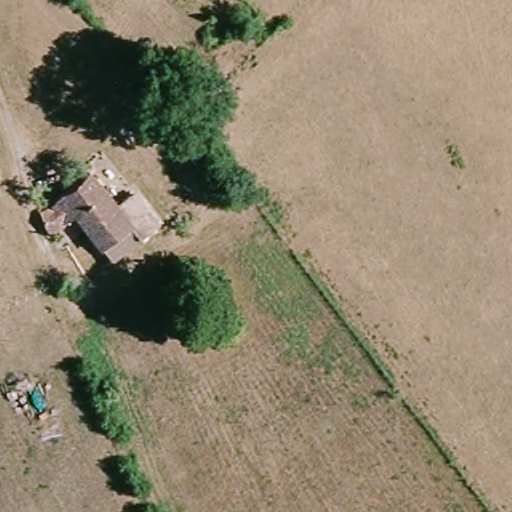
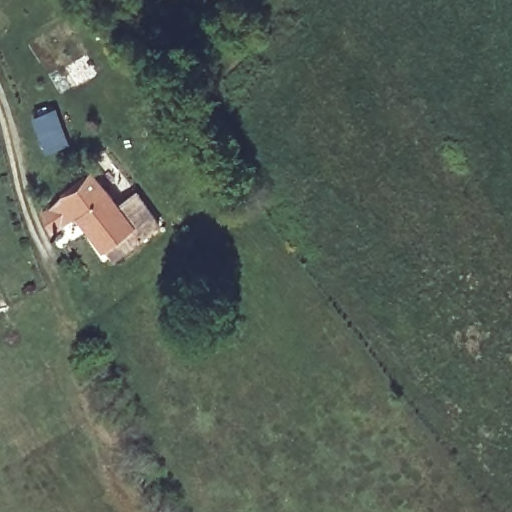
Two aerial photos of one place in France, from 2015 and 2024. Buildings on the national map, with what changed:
unchanged [(134,237),(105,257),(67,206),(49,217),(40,201),(55,190),(88,165),(111,203),(119,197),(131,191),(152,224),(134,237)]

